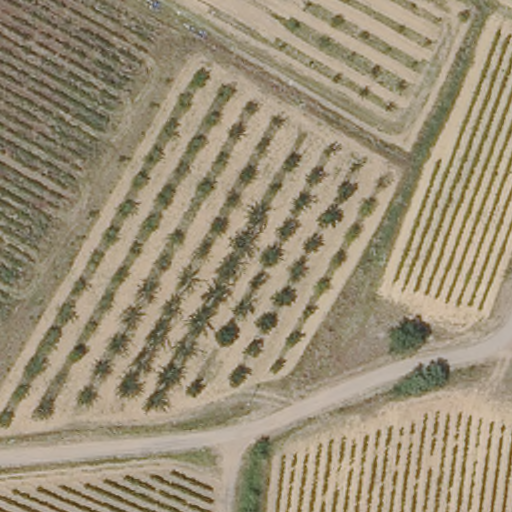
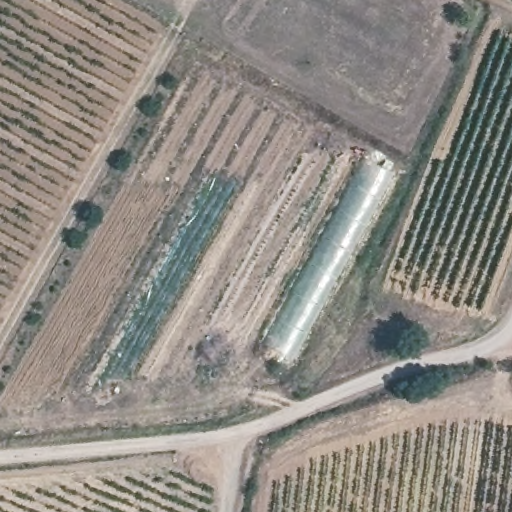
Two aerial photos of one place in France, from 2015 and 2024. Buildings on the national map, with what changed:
new [(293,358),(265,344),(364,158),(392,172),(293,358)]

